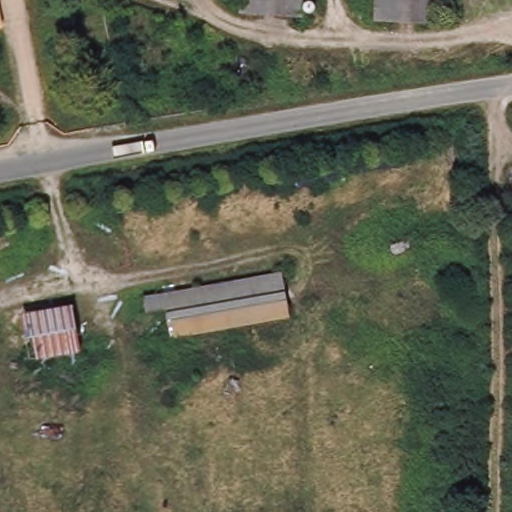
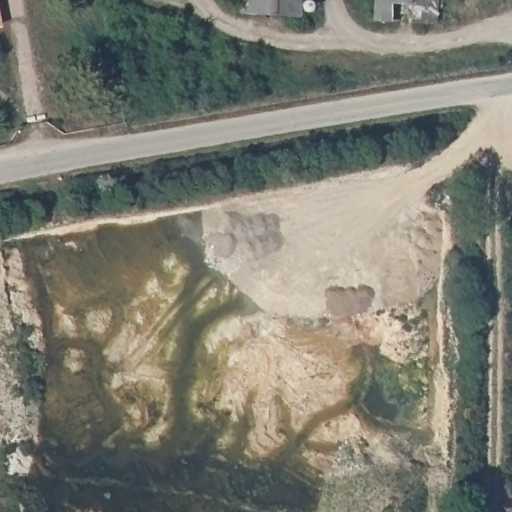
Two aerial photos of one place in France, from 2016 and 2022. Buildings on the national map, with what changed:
unchanged [(312,14),(242,12),(242,0),(312,0),(312,14)]
unchanged [(390,22),(391,0),(435,0),(435,22),(398,22),(390,22)]
demolished [(288,312),(171,333),(170,330),(166,307),(142,312),(140,297),(282,272),(288,312)]

